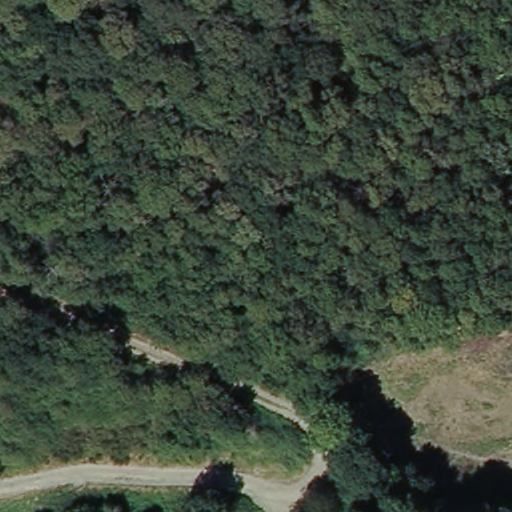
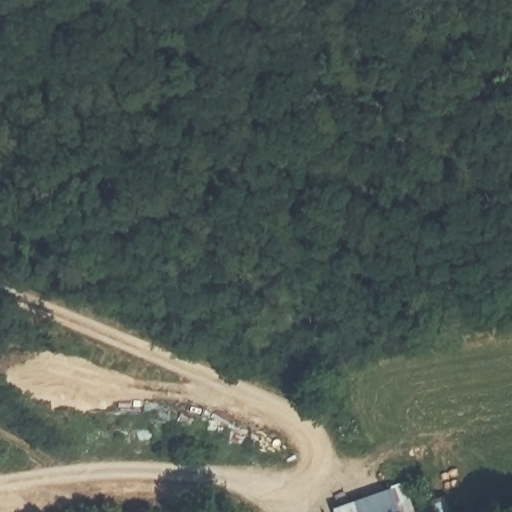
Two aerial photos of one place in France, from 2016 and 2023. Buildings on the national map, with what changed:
new [(331,512),(330,510),(391,490),(398,512),(331,512)]

